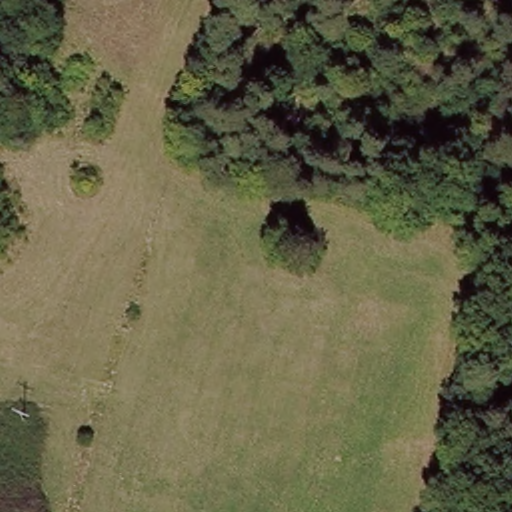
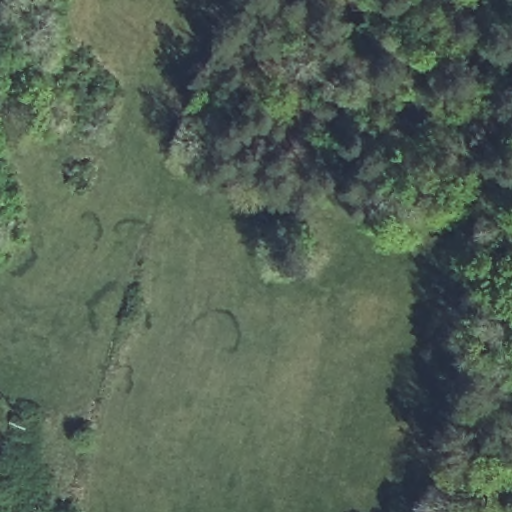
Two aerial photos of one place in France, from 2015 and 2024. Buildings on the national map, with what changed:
[]

